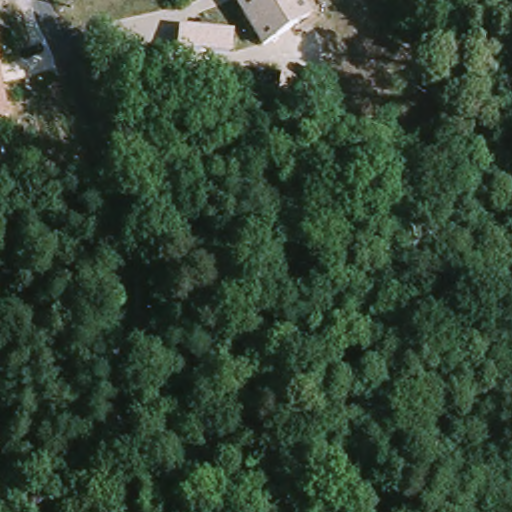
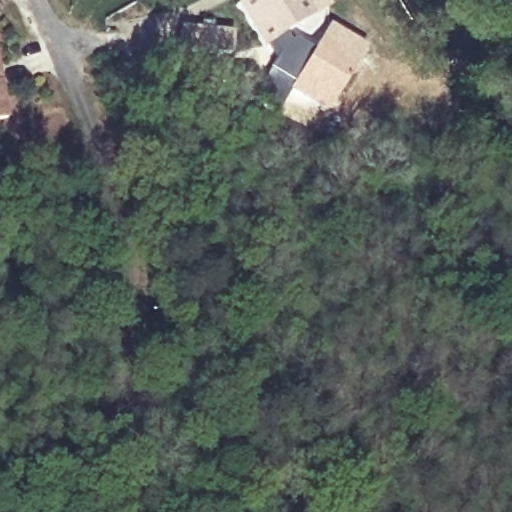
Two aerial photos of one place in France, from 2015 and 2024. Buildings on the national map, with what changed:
unchanged [(309,16),(263,45),(236,2),(240,0),(299,0),(309,16)]
unchanged [(200,21),(212,23),(211,32),(230,34),(229,55),(179,49),(180,28),(200,30),(200,21)]
new [(327,22),(366,46),(326,113),(315,130),(276,107),(287,89),(327,22)]
unchanged [(271,73),(280,74),(278,89),(242,85),(241,87),(230,86),(230,77),(242,78),(244,71),(271,73)]
unchanged [(0,76),(1,81),(8,116),(0,118),(0,76)]

